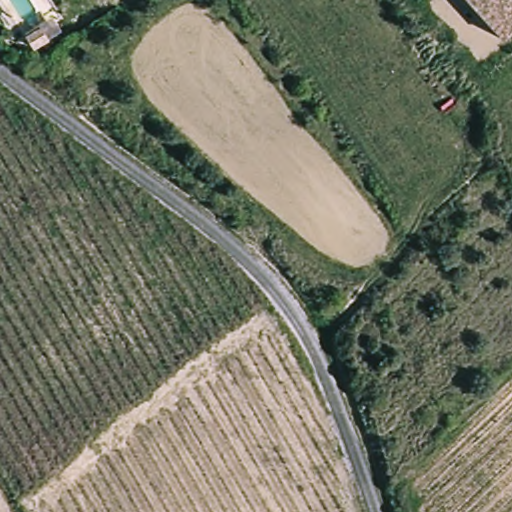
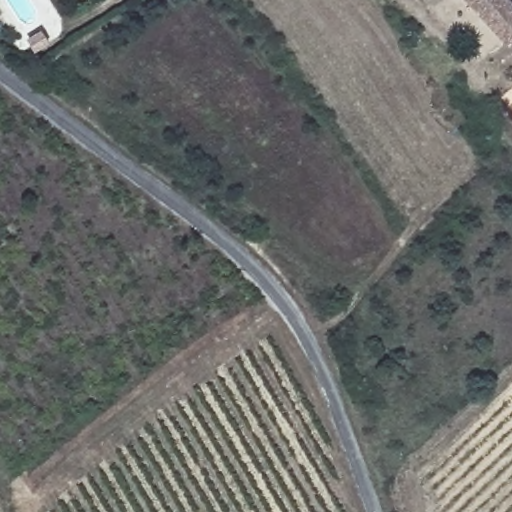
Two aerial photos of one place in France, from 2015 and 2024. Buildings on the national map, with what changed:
unchanged [(503,44),(469,0),(508,0),(512,5),(512,37),(503,44)]

